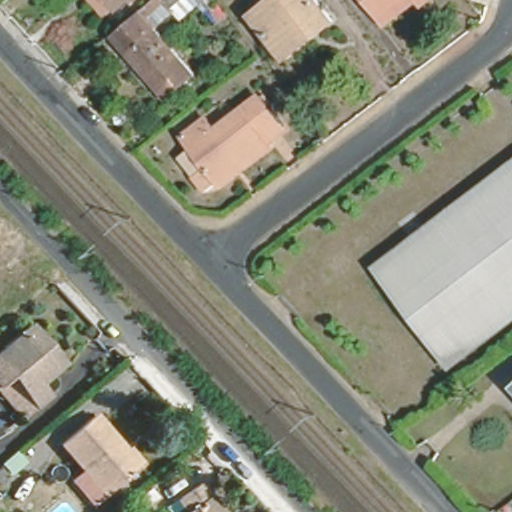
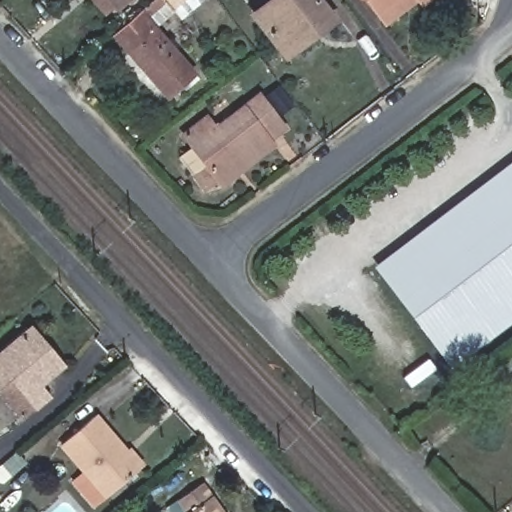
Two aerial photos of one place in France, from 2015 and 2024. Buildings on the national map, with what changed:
unchanged [(98,0),(121,0),(116,5),(112,0),(105,7),(98,0)]
unchanged [(171,5),(167,0),(176,0),(171,5)]
unchanged [(328,20),(281,57),(248,16),(268,0),(312,0),(328,20)]
unchanged [(372,15),(361,0),(393,0),(372,15)]
unchanged [(192,70),(165,94),(126,49),(155,24),(192,70)]
unchanged [(287,134),(217,185),(181,136),(206,119),(214,129),(258,95),(287,134)]
unchanged [(438,355),(369,266),(512,155),(512,298),(438,355)]
unchanged [(24,384),(34,395),(9,416),(0,406),(0,342),(10,333),(42,368),(24,384)]
unchanged [(508,383),(512,380),(512,387),(508,383)]
unchanged [(76,475),(87,464),(65,438),(96,409),(142,460),(110,489),(98,500),(76,475)]
unchanged [(180,512),(175,503),(197,487),(213,512),(180,512)]

